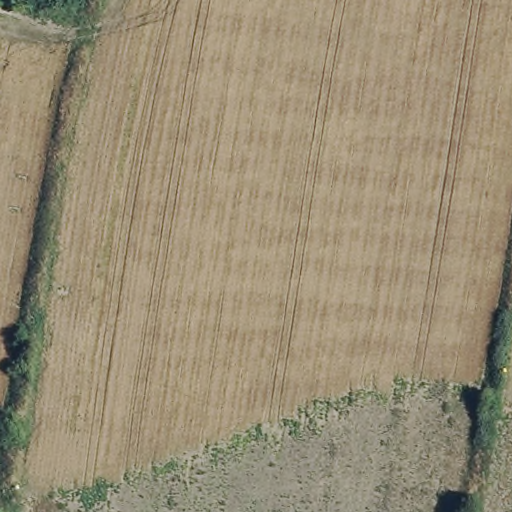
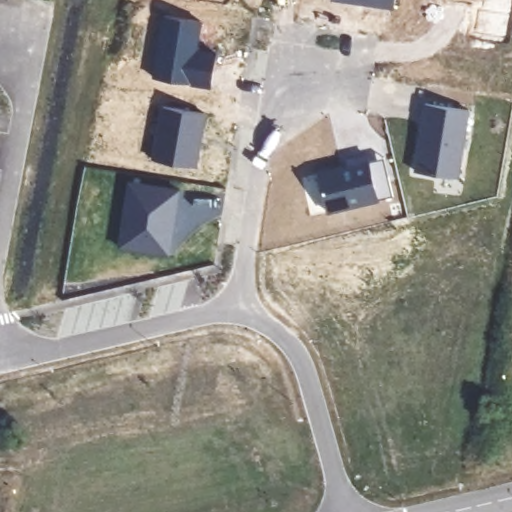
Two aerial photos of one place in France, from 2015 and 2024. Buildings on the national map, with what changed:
new [(208,0),(225,0),(224,3),(208,0)]
new [(334,0),(396,0),(395,8),(334,0)]
new [(473,33),(478,2),(467,0),(512,0),(512,1),(505,39),(473,33)]
new [(199,46),(219,50),(212,87),(153,76),(164,14),(203,20),(199,46)]
new [(197,167),(152,158),(162,103),(208,113),(197,167)]
new [(471,109),(459,179),(415,172),(427,103),(471,109)]
new [(370,161),(385,157),(393,195),(380,197),(380,203),(327,214),(318,169),(347,164),(347,157),(370,154),(370,161)]
new [(172,255),(117,248),(128,180),(182,189),(172,255)]

